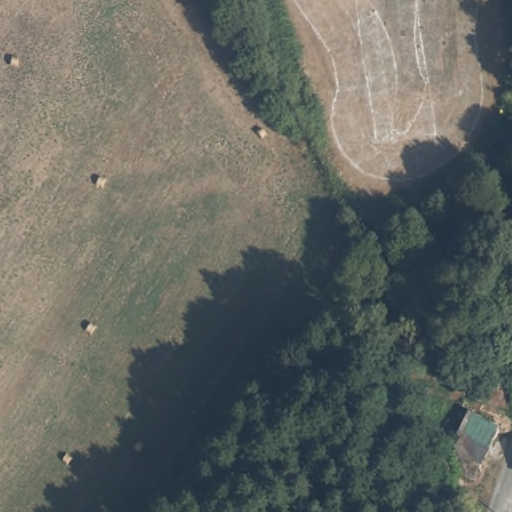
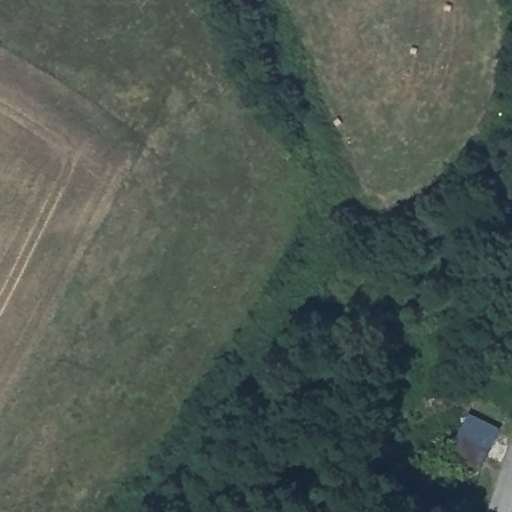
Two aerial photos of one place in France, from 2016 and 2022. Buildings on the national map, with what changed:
unchanged [(453,463),(463,440),(456,437),(473,408),(496,419),(476,473),(467,498),(442,488),(453,463)]

